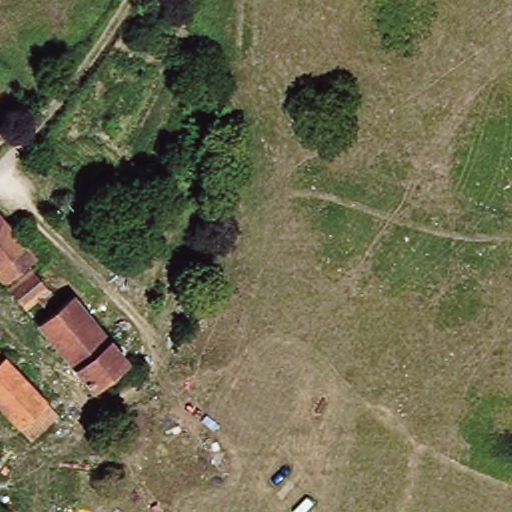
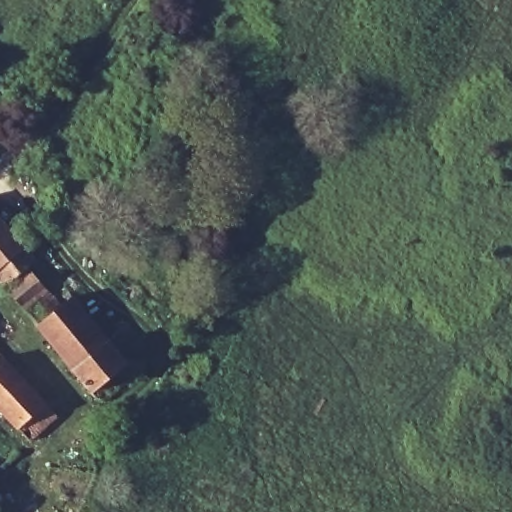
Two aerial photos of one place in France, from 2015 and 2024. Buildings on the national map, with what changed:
unchanged [(6,288),(0,281),(0,219),(36,262),(6,288)]
unchanged [(128,367),(95,396),(37,329),(49,319),(36,304),(27,312),(11,294),(32,277),(61,311),(72,301),(128,367)]
unchanged [(32,444),(0,410),(0,354),(59,418),(32,444)]

